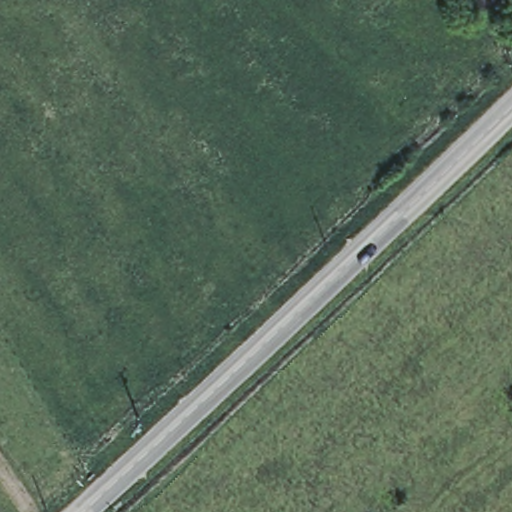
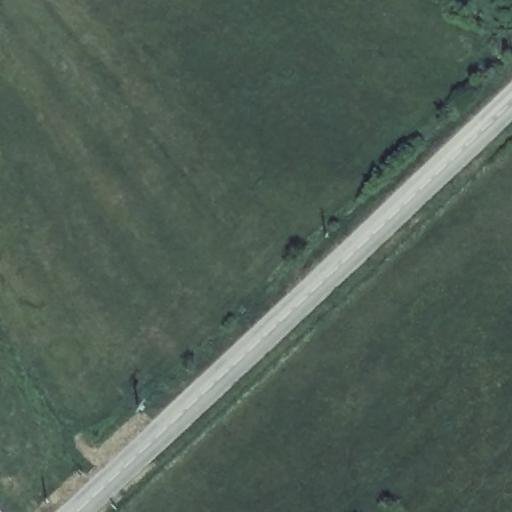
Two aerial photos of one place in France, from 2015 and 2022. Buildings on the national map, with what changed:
[]

